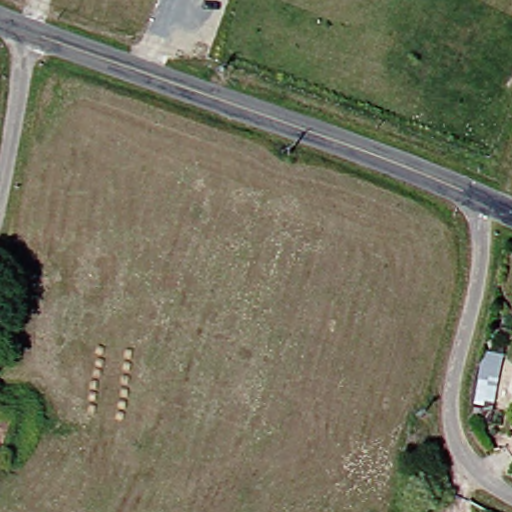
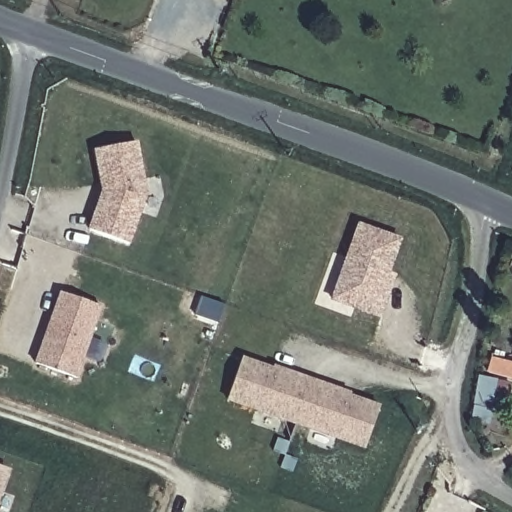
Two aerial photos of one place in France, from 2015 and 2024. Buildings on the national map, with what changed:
new [(101,211),(105,212),(111,193),(109,185),(105,186),(96,152),(137,142),(149,195),(131,242),(94,230),(101,211)]
new [(362,224),(403,238),(383,295),(388,297),(382,315),(336,297),(362,224)]
new [(61,292),(102,305),(79,377),(38,363),(61,292)]
unchanged [(506,355),(490,424),(469,420),(483,352),(506,355)]
new [(312,426),(299,421),(284,416),(228,396),(242,356),(299,376),(313,381),(327,386),(383,407),(369,446),(312,426)]
demolished [(0,434),(0,419),(6,422),(0,434)]
new [(0,499),(0,465),(11,468),(0,499)]

